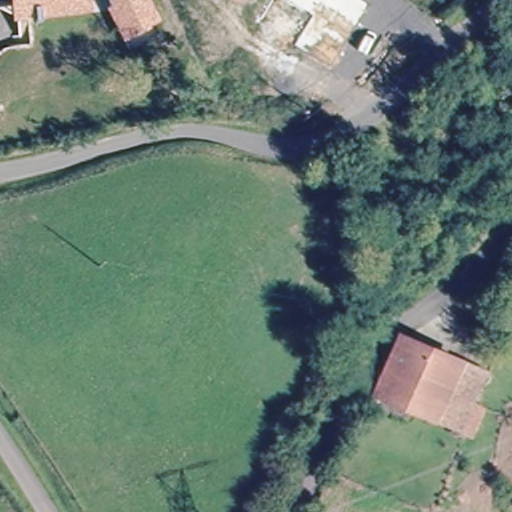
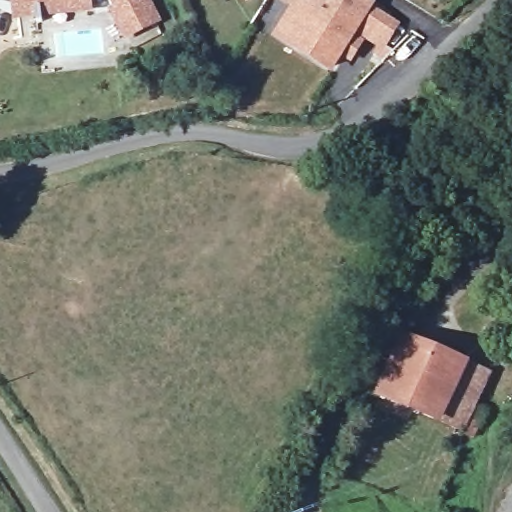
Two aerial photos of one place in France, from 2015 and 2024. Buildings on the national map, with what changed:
unchanged [(93,13),(42,17),(43,22),(34,22),(34,18),(13,20),(10,0),(92,0),(93,13)]
unchanged [(161,20),(123,39),(107,10),(110,7),(106,0),(150,0),(161,20)]
unchanged [(245,3),(240,0),(247,0),(245,3)]
new [(375,2),(373,5),(401,24),(386,46),(388,51),(377,57),(372,51),(377,48),(365,40),(350,65),(342,59),(330,76),(270,38),(290,6),(281,0),(372,0),(375,2)]
unchanged [(400,337),(482,368),(470,398),(485,405),(472,430),(463,427),(375,396),(400,337)]

